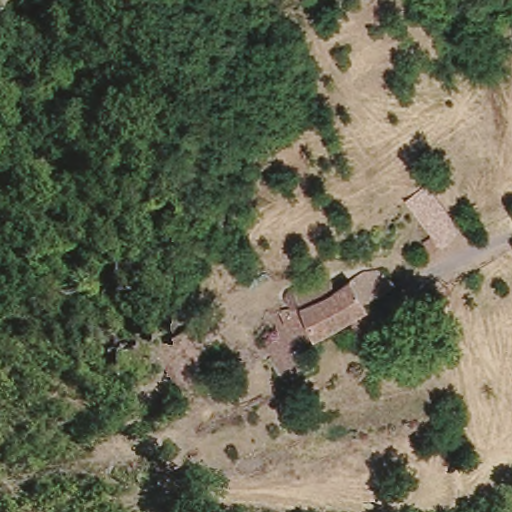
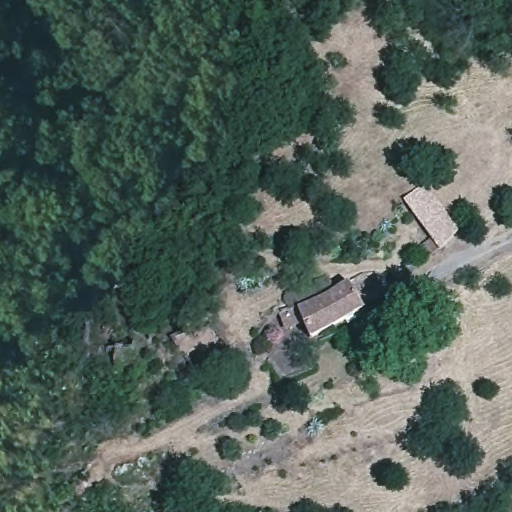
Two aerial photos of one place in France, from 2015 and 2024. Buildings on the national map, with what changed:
unchanged [(436,253),(427,241),(430,236),(402,202),(423,184),(462,229),(436,253)]
unchanged [(282,316),(290,314),(288,309),(286,303),(289,298),(293,295),(331,286),(334,290),(346,285),(348,289),(364,277),(381,274),(396,288),(373,308),(360,316),(332,334),(314,346),(304,328),(294,335),(282,316)]

